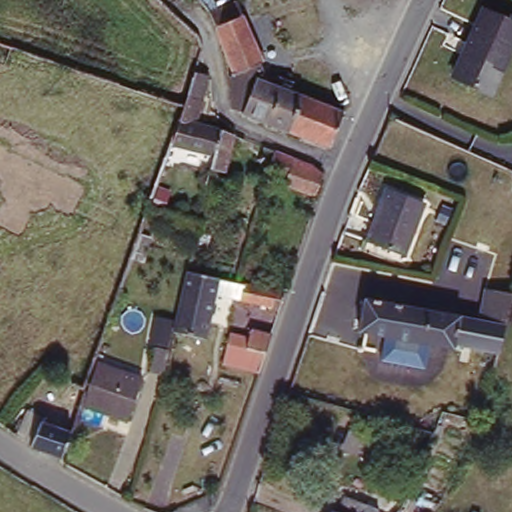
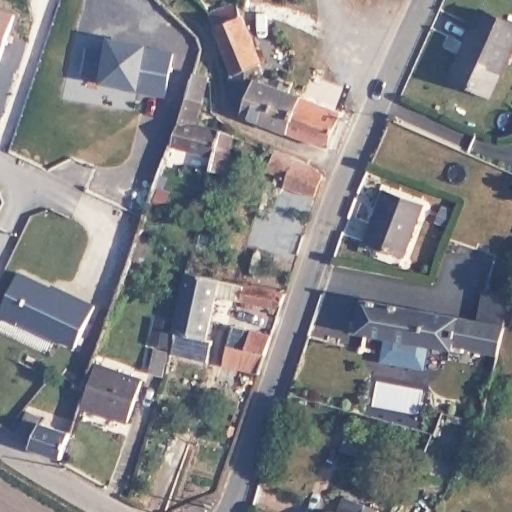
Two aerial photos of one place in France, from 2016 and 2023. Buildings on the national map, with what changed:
unchanged [(309,96),(294,131),(249,113),(240,109),(238,87),(238,85),(239,73),(239,71),(242,70),(224,28),(218,12),(246,1),(247,0),(253,15),(264,49),(269,63),(267,64),(270,72),(266,75),(266,79),(272,81),(298,91),(309,96)]
unchanged [(485,11),(512,22),(512,50),(492,95),(454,78),(485,11)]
new [(0,53),(0,12),(14,17),(0,53)]
new [(109,49),(110,36),(149,45),(176,51),(168,97),(141,92),(101,85),(103,77),(83,74),(86,45),(109,49)]
unchanged [(210,80),(204,99),(205,102),(198,121),(237,135),(226,171),(213,168),(212,168),(215,154),(184,147),(176,167),(174,166),(172,170),(164,168),(187,105),(189,98),(198,75),(210,80)]
unchanged [(309,96),(351,112),(337,146),(313,138),(294,131),(309,96)]
demolished [(415,125),(457,146),(444,170),(429,163),(421,160),(382,146),(396,115),(415,125)]
unchanged [(314,171),(324,180),(324,185),(322,184),(316,202),(287,190),(289,185),(274,178),(270,177),(277,156),(314,171)]
unchanged [(383,186),(420,201),(401,253),(364,239),(383,186)]
unchanged [(188,270),(239,282),(285,293),(282,305),(274,308),(216,295),(205,339),(174,331),(188,270)]
new [(96,303),(78,349),(19,322),(18,324),(0,315),(20,271),(96,303)]
unchanged [(414,357),(369,348),(369,346),(371,331),(364,330),(372,297),(484,319),(492,287),(496,288),(512,291),(512,321),(509,333),(504,353),(487,349),(485,354),(474,353),(475,348),(474,346),(469,345),(468,350),(439,344),(434,361),(414,357)]
unchanged [(242,371),(244,359),(224,355),(227,343),(244,347),(247,339),(267,344),(264,351),(257,375),(242,371)]
unchanged [(153,341),(168,344),(164,369),(149,367),(153,341)]
unchanged [(96,364),(141,379),(128,419),(83,405),(96,364)]
unchanged [(44,422),(76,432),(68,459),(35,448),(44,422)]
unchanged [(442,504),(436,512),(414,512),(424,493),(442,504)]
unchanged [(367,508),(378,512),(341,512),(346,500),(367,508)]

